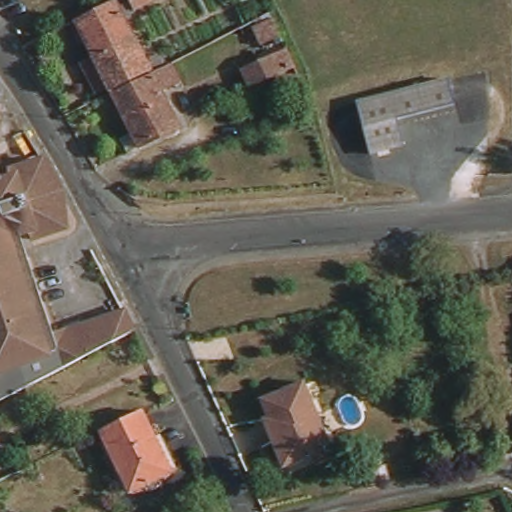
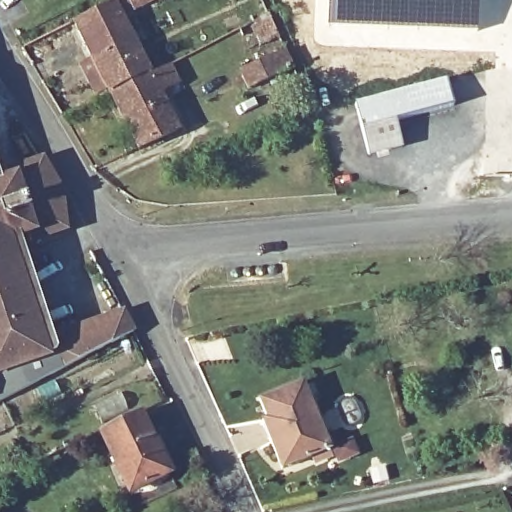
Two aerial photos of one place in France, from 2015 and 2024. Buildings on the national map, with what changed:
unchanged [(144,5),(134,10),(129,0),(154,0),(144,5)]
new [(325,30),(327,0),(480,0),(479,31),(385,30),(384,44),(334,43),(334,38),(331,37),(331,30),(325,30)]
unchanged [(75,25),(115,4),(152,74),(113,94),(75,25)]
unchanged [(284,50),(292,67),(254,87),(244,69),(263,60),(258,49),(244,24),(271,12),(281,33),(289,47),(284,50)]
unchanged [(120,137),(132,131),(113,94),(152,74),(174,62),(182,80),(161,90),(180,130),(129,154),(120,137)]
unchanged [(374,157),(361,106),(453,83),(459,107),(404,121),(410,147),(374,157)]
unchanged [(6,189),(13,187),(13,182),(23,180),(21,172),(41,165),(63,199),(67,232),(34,245),(31,235),(22,239),(57,340),(128,313),(139,332),(0,402),(0,173),(6,189)]
unchanged [(266,423),(312,403),(332,451),(285,471),(266,423)]
unchanged [(103,432),(142,413),(168,466),(150,475),(152,481),(132,491),(103,432)]

